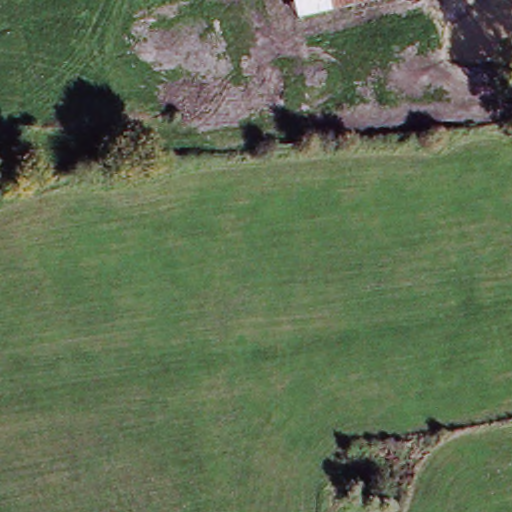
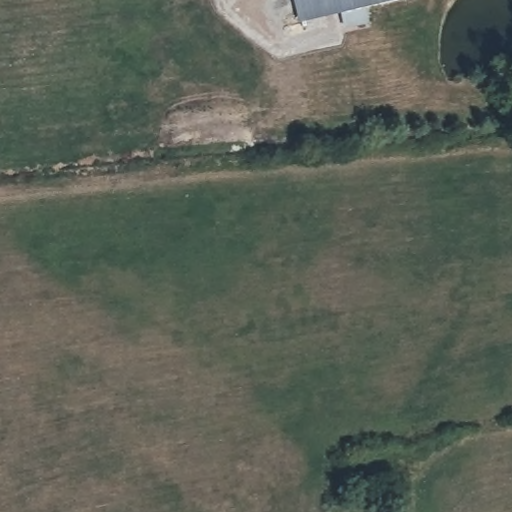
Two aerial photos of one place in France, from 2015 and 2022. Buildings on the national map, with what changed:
unchanged [(304,7),(302,0),(405,0),(307,23),(304,7)]

